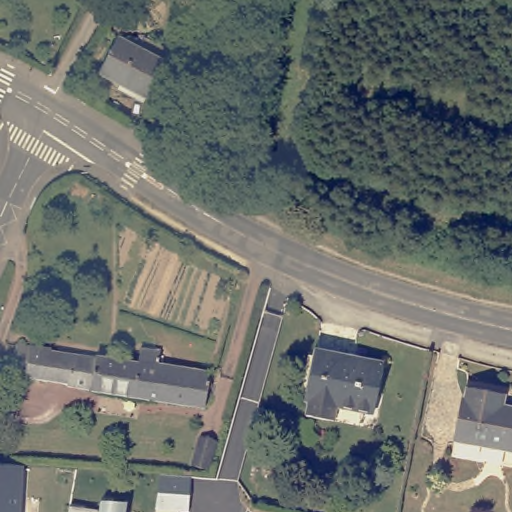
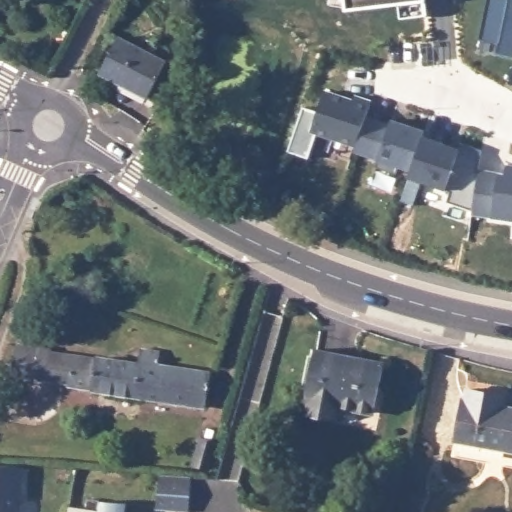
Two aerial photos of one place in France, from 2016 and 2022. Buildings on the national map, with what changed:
new [(400,3),(346,10),(346,7),(330,5),(331,0),(426,0),(427,13),(401,16),(400,3)]
new [(512,0),(512,59),(495,55),(496,45),(478,42),(486,0),(512,0)]
unchanged [(99,74),(117,36),(165,60),(145,97),(99,74)]
new [(325,90),(353,99),(355,95),(371,100),(366,114),(356,144),(311,129),(325,90)]
new [(356,144),(366,114),(390,122),(391,118),(425,129),(423,135),(411,169),(399,165),(396,172),(375,165),(378,158),(354,150),(356,144)]
new [(423,135),(445,142),(459,147),(461,141),(481,148),(478,167),(473,208),(447,200),(450,189),(409,175),(411,169),(423,135)]
new [(473,208),(478,167),(505,172),(506,162),(512,163),(512,219),(472,212),(473,208)]
unchanged [(52,351),(52,354),(96,361),(96,358),(138,364),(141,349),(160,352),(160,365),(211,373),(206,408),(69,388),(70,385),(25,379),(27,370),(15,368),(16,361),(19,346),(52,351)]
unchanged [(366,413),(339,408),(335,421),(307,415),(310,401),(306,401),(317,350),(385,364),(379,394),(375,415),(366,413)]
unchanged [(456,441),(465,396),(466,397),(468,388),(506,395),(505,404),(512,406),(512,451),(456,441)]
unchanged [(20,512),(0,512),(0,465),(22,465),(20,512)]
unchanged [(155,508),(159,475),(190,477),(187,509),(155,508)]
unchanged [(68,505),(97,510),(99,500),(126,501),(125,512),(67,512),(68,505)]

